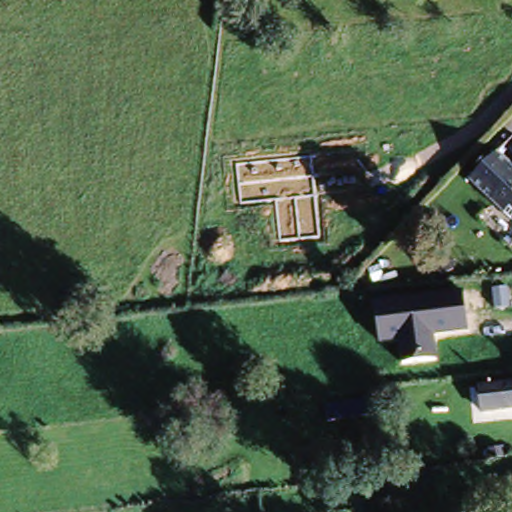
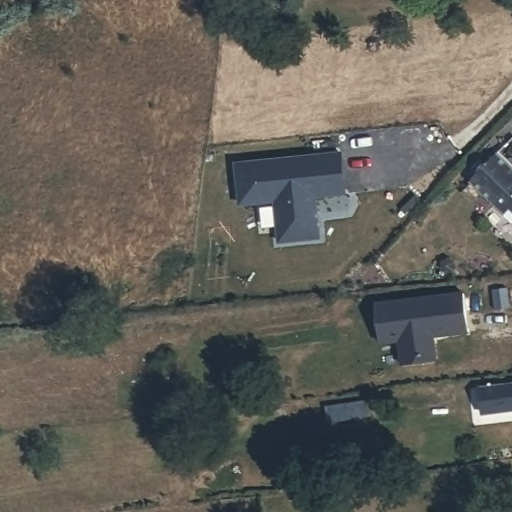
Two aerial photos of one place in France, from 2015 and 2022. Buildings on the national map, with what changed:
new [(344,154),(347,194),(318,196),(322,238),(281,242),(277,200),(242,203),(239,164),(344,154)]
unchanged [(474,178),(500,157),(512,172),(512,224),(474,178)]
unchanged [(465,292),(470,334),(436,338),(439,361),(402,366),(399,342),(381,344),(376,303),(465,292)]
unchanged [(480,415),(476,386),(512,382),(512,412),(480,415)]
unchanged [(367,400),(370,416),(328,422),(326,406),(367,400)]

